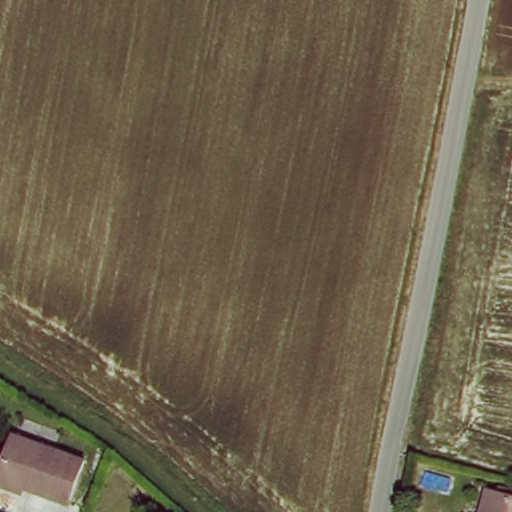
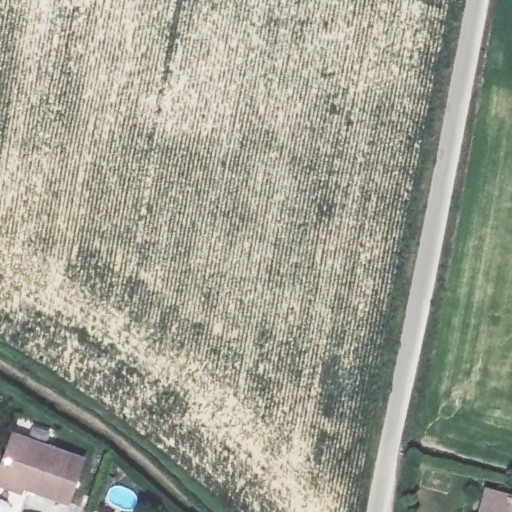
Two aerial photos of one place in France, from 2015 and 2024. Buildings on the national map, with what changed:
unchanged [(83,460),(72,498),(0,481),(0,474),(10,441),(83,460)]
unchanged [(485,485),(498,490),(512,494),(512,512),(479,512),(485,485)]

